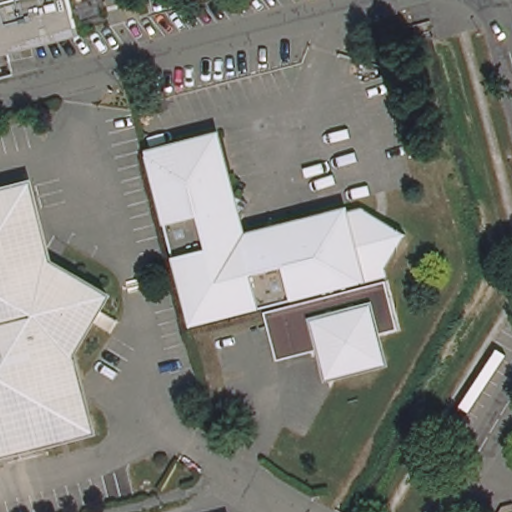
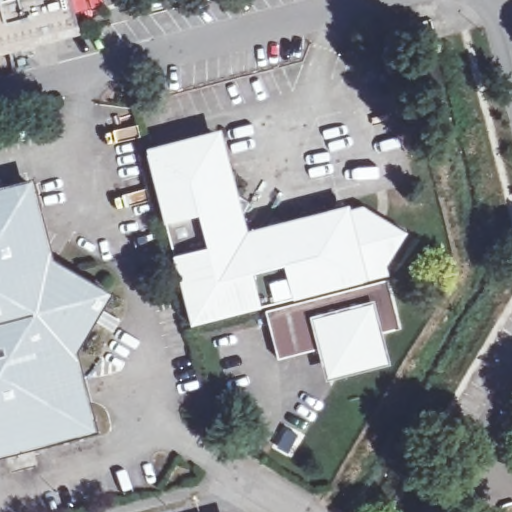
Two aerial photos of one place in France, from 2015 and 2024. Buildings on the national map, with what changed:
unchanged [(0,57),(0,0),(69,0),(78,39),(0,57)]
unchanged [(269,211),(288,221),(362,204),(403,229),(383,265),(384,270),(188,320),(171,252),(144,150),(214,131),(228,186),(246,196),(228,226),(253,240),(269,211)]
unchanged [(44,260),(105,296),(68,358),(88,430),(0,452),(0,193),(25,187),(44,260)]
unchanged [(384,276),(397,325),(371,331),(376,346),(368,357),(339,365),(326,357),(322,343),(275,355),(263,306),(384,276)]

